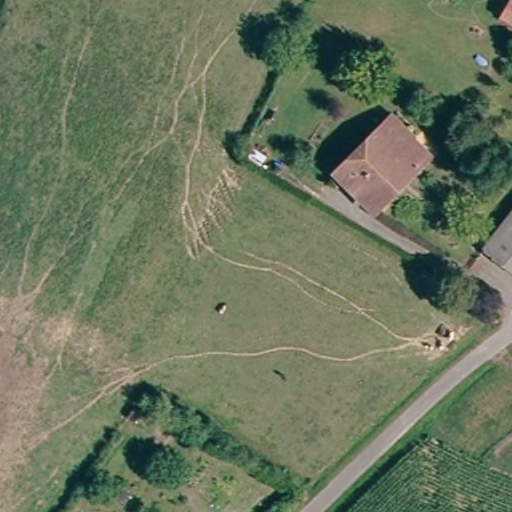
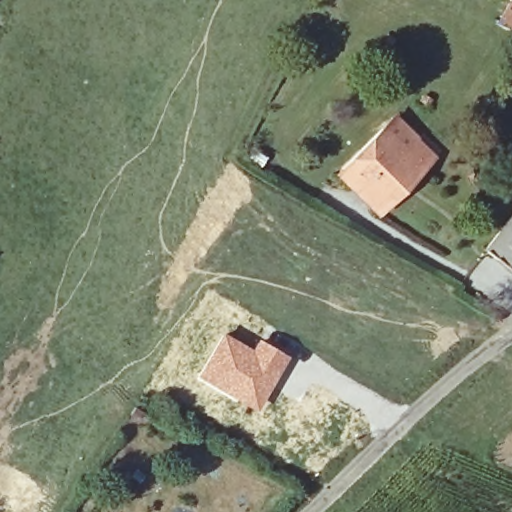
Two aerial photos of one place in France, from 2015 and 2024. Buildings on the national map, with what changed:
unchanged [(495,15),(504,0),(512,0),(512,25),(495,15)]
unchanged [(388,118),(428,158),(404,182),(399,176),(368,207),(334,172),(388,118)]
unchanged [(483,249),(512,201),(512,265),(483,249)]
new [(222,332),(251,347),(257,337),(289,356),(254,410),(196,377),(222,332)]

